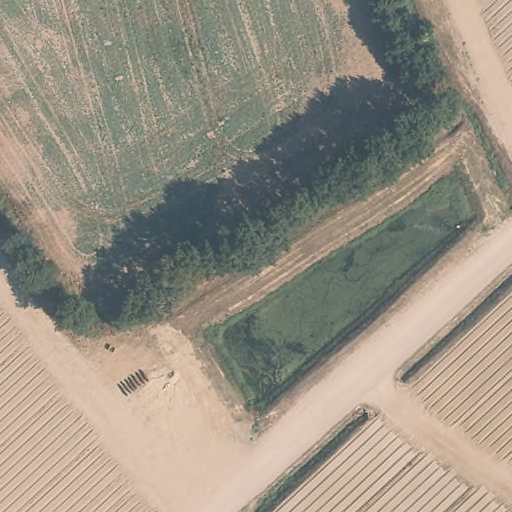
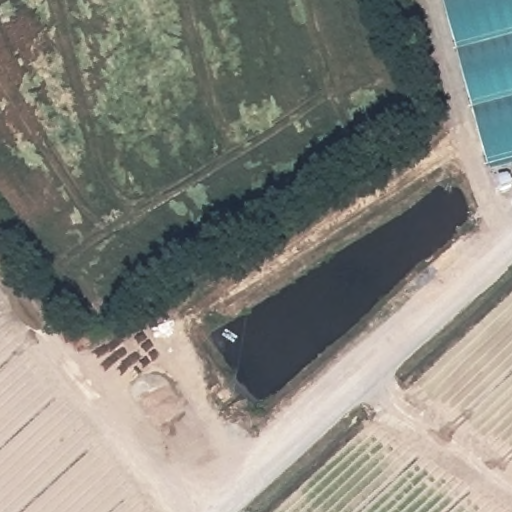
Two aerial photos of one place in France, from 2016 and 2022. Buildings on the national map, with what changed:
new [(445,0),(512,0),(512,161),(490,166),(445,0)]

